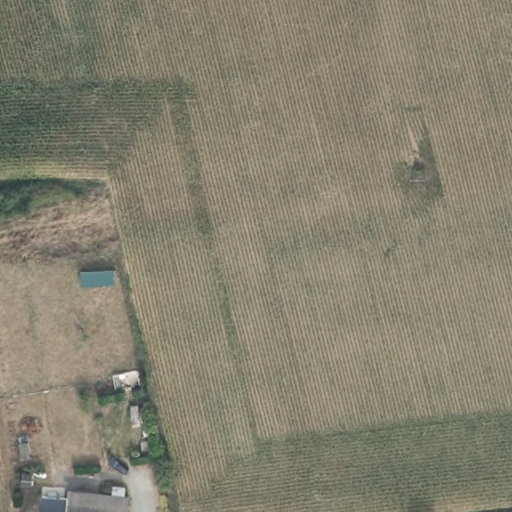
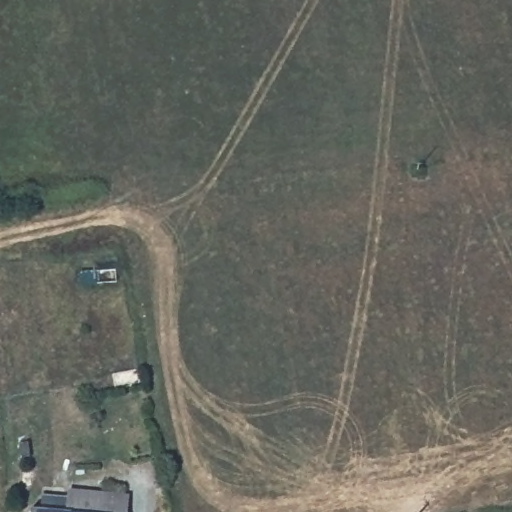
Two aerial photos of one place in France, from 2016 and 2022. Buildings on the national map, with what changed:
unchanged [(66,506),(67,497),(122,492),(124,512),(40,512),(40,506),(51,504),(66,506)]

